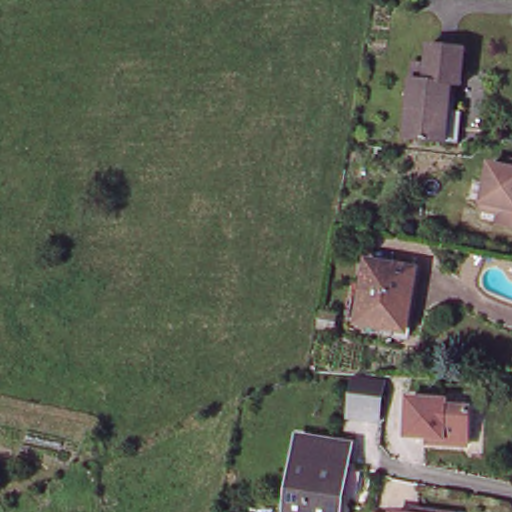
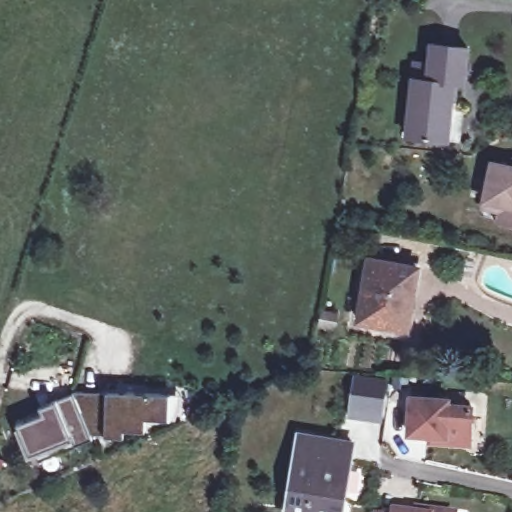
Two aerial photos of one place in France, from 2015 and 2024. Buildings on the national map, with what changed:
unchanged [(468,49),(464,85),(454,85),(447,141),(408,137),(414,79),(416,66),(429,67),(432,45),(468,49)]
unchanged [(494,164),(512,168),(512,225),(501,222),(503,212),(484,208),(486,201),(494,164)]
unchanged [(414,295),(409,294),(402,329),(358,321),(370,259),(418,268),(414,295)]
unchanged [(336,328),(321,326),(324,315),(338,318),(336,328)]
new [(362,369),(394,374),(389,412),(357,408),(362,369)]
new [(43,414),(40,405),(56,399),(73,392),(106,391),(178,393),(177,405),(173,415),(169,419),(144,419),(144,431),(123,431),(123,436),(104,436),(91,434),(92,438),(38,460),(36,456),(27,459),(15,428),(18,427),(17,424),(43,414)]
unchanged [(432,437),(409,434),(414,400),(452,405),(451,410),(476,413),(472,449),(447,446),(430,444),(432,437)]
unchanged [(352,467),(346,466),(338,512),(288,512),(301,437),(355,445),(352,467)]
unchanged [(427,511),(429,512),(427,512),(427,511)]

